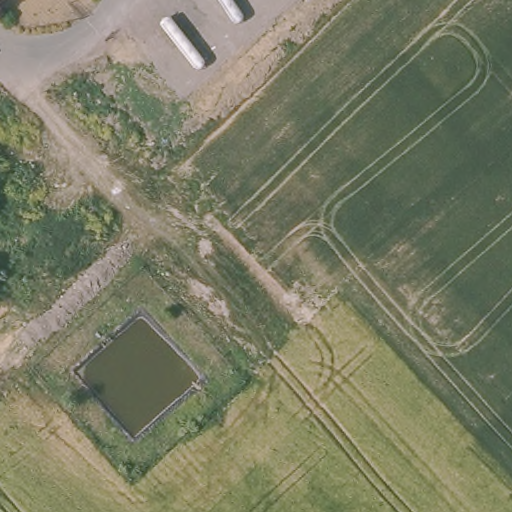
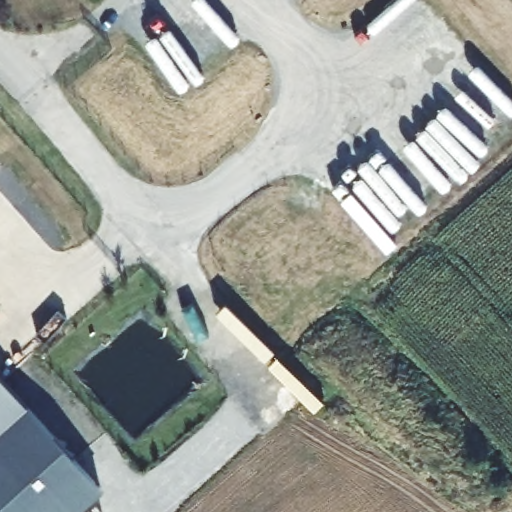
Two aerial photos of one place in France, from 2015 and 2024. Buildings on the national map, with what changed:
new [(0,451),(0,379),(36,419),(0,451)]
new [(79,512),(0,512),(0,451),(36,419),(102,491),(79,512)]

